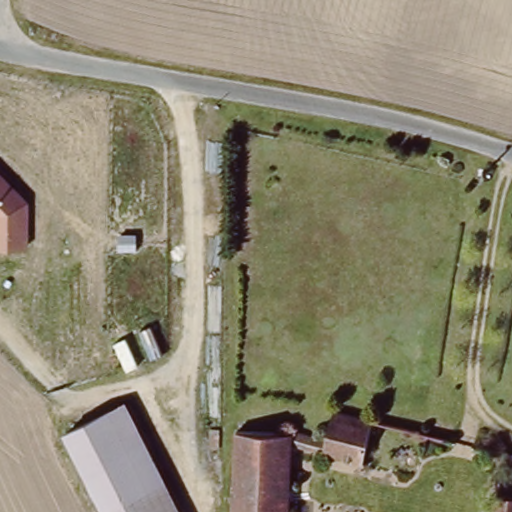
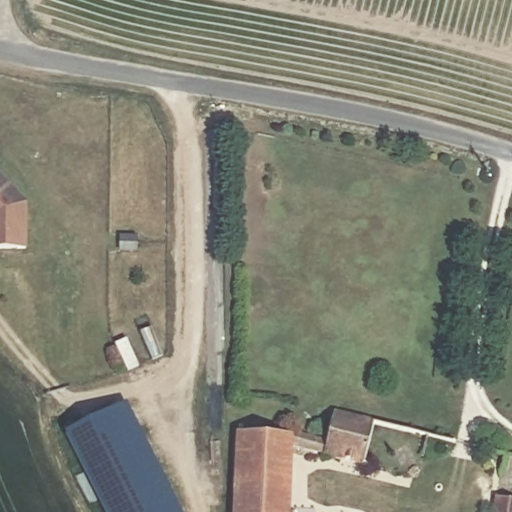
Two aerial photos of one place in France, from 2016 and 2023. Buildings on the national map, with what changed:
unchanged [(27,246),(0,246),(0,174),(27,201),(27,246)]
unchanged [(125,403),(180,512),(103,512),(62,433),(125,403)]
unchanged [(377,422),(368,466),(327,458),(337,410),(377,422)]
unchanged [(292,433),(289,512),(230,512),(233,432),(292,433)]
unchanged [(495,497),(512,501),(512,512),(492,512),(495,497)]

